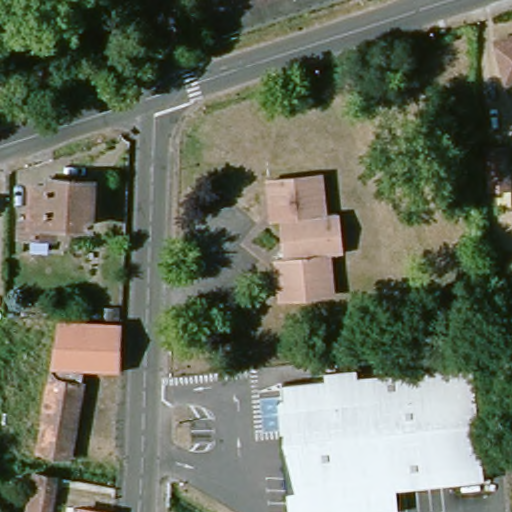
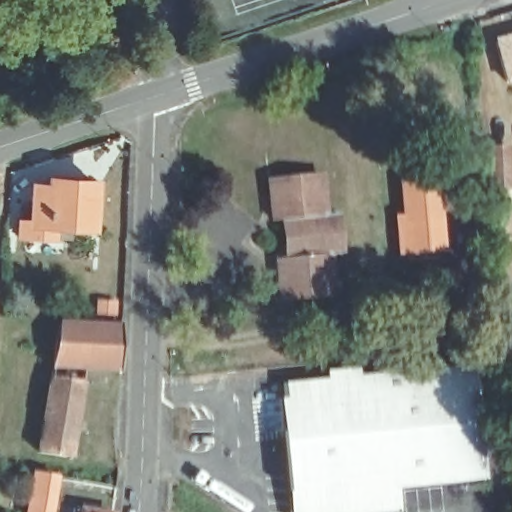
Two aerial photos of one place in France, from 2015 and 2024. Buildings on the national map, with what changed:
unchanged [(512,74),(502,76),(493,39),(512,34),(512,74)]
unchanged [(512,182),(491,184),(489,142),(512,141),(512,182)]
unchanged [(320,172),(321,217),(337,216),(338,252),(323,254),(325,293),(272,296),(271,257),(286,256),(285,220),(269,220),(268,175),(320,172)]
new [(399,213),(398,178),(439,174),(447,254),(397,259),(393,214),(399,213)]
unchanged [(52,223),(51,239),(14,236),(16,220),(30,220),(32,187),(45,188),(47,180),(90,182),(89,225),(52,223)]
unchanged [(81,366),(63,457),(32,451),(59,321),(120,326),(117,370),(81,366)]
unchanged [(477,358),(489,479),(401,488),(403,512),(316,512),(310,428),(297,429),(281,430),(277,378),(297,376),(477,358)]
unchanged [(281,430),(297,429),(310,428),(316,512),(287,512),(281,430)]
unchanged [(45,512),(23,512),(28,469),(52,472),(45,512)]

